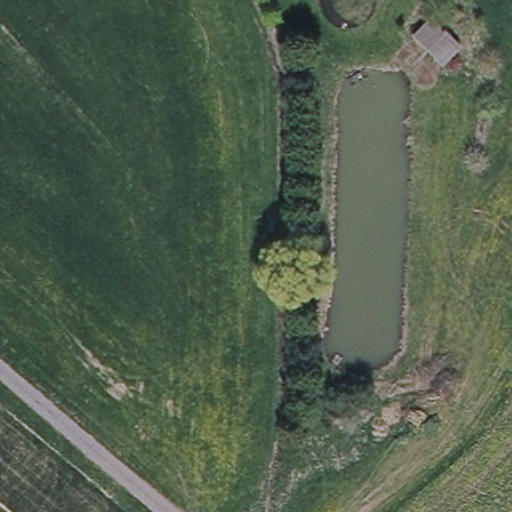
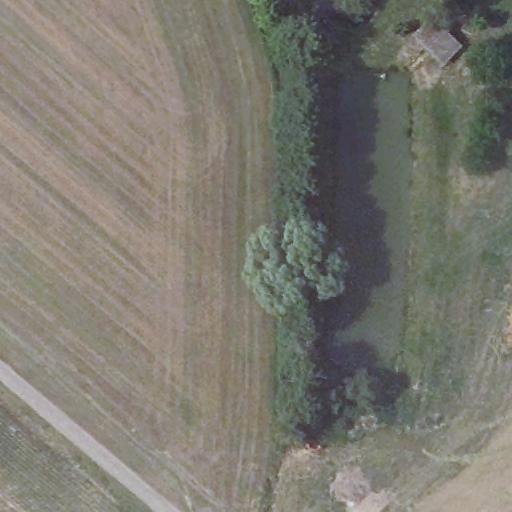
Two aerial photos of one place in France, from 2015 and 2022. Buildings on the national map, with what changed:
unchanged [(433,21),(459,46),(442,66),(415,41),(433,21)]

